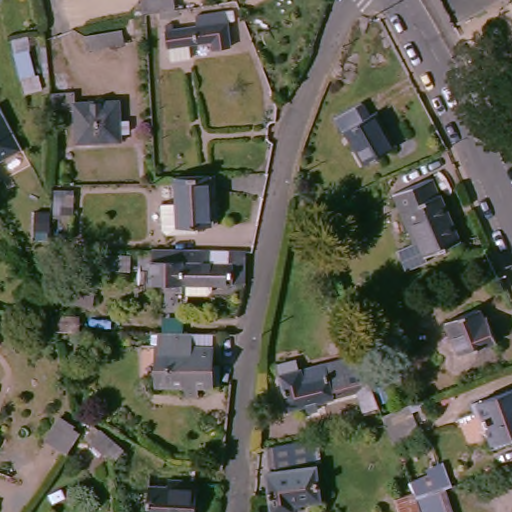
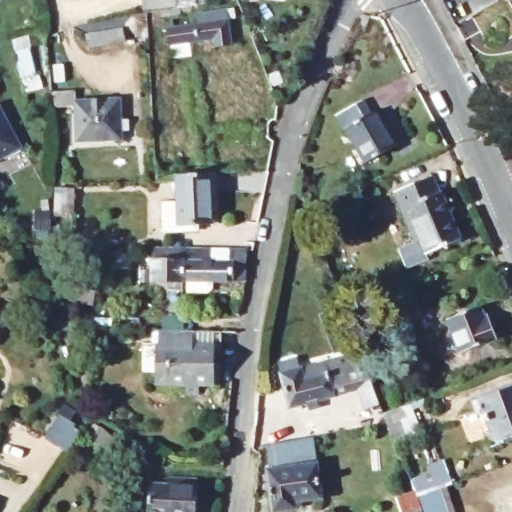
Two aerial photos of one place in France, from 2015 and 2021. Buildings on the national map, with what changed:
unchanged [(173,0),(174,9),(151,13),(149,0),(173,0)]
unchanged [(236,51),(221,51),(219,42),(169,45),(164,20),(174,19),(179,25),(208,22),(209,10),(224,7),(236,51)]
unchanged [(136,29),(101,30),(99,16),(139,15),(136,29)]
unchanged [(76,143),(76,108),(51,108),(51,90),(77,89),(78,100),(123,97),(126,142),(76,143)]
unchanged [(0,158),(0,105),(23,147),(0,158)]
unchanged [(401,152),(363,171),(336,117),(356,105),(366,120),(379,114),(401,152)]
unchanged [(217,174),(215,222),(178,221),(179,175),(217,174)]
unchanged [(466,236),(426,254),(419,235),(413,237),(399,192),(432,177),(438,192),(449,192),(466,236)]
unchanged [(231,282),(179,280),(151,278),(151,250),(179,250),(231,251),(231,282)]
unchanged [(103,275),(68,273),(69,260),(105,262),(103,275)]
unchanged [(131,276),(114,276),(116,260),(132,260),(131,276)]
unchanged [(86,300),(87,310),(61,310),(59,298),(86,300)]
unchanged [(501,341),(461,355),(449,318),(476,307),(479,315),(490,310),(501,341)]
unchanged [(209,392),(162,386),(168,338),(173,338),(175,330),(188,331),(186,335),(210,335),(209,392)]
unchanged [(368,376),(304,409),(289,380),(356,347),(368,376)]
unchanged [(480,404),(512,393),(512,440),(494,446),(480,404)]
unchanged [(377,416),(411,404),(416,434),(391,440),(385,430),(377,416)]
unchanged [(69,451),(89,428),(104,440),(115,432),(136,447),(126,458),(112,446),(106,441),(82,463),(69,451)]
unchanged [(267,473),(268,448),(318,438),(321,462),(328,496),(298,502),(299,510),(290,512),(272,512),(267,473)]
unchanged [(394,499),(408,493),(412,480),(446,463),(456,486),(447,490),(455,512),(426,512),(399,512),(394,499)]
unchanged [(198,512),(139,512),(141,487),(163,490),(164,479),(199,481),(198,512)]

